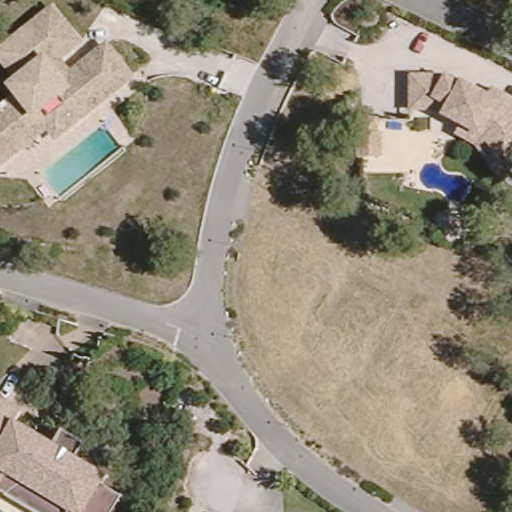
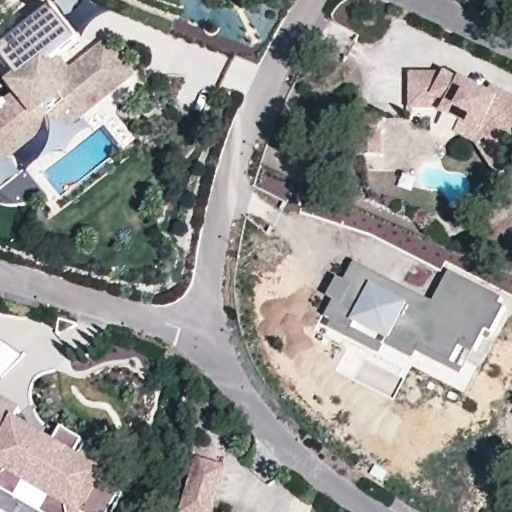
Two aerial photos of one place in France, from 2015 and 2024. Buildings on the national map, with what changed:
unchanged [(53,6),(83,47),(65,61),(72,70),(108,41),(134,75),(0,174),(0,104),(15,92),(8,82),(14,78),(0,60),(0,49),(53,6)]
unchanged [(462,80),(484,93),(492,85),(512,95),(512,171),(496,181),(476,145),(458,131),(461,126),(442,111),(443,108),(411,106),(409,75),(444,75),(462,80)]
new [(364,133),(363,117),(380,117),(380,132),(383,132),(383,156),(360,156),(360,133),(364,133)]
new [(431,301),(447,270),(504,297),(501,305),(506,307),(494,335),(487,331),(476,355),(462,349),(454,364),(467,370),(464,378),(418,355),(416,361),(387,345),(382,357),(331,331),(336,323),(328,319),(336,303),(329,300),(340,281),(346,284),(356,263),(431,301)]
unchanged [(26,412),(20,421),(55,442),(61,430),(88,444),(81,456),(110,472),(104,487),(122,500),(116,512),(39,512),(1,490),(0,491),(0,396),(26,412)]
new [(199,460),(227,468),(216,504),(214,512),(184,512),(189,495),(188,495),(199,460)]

